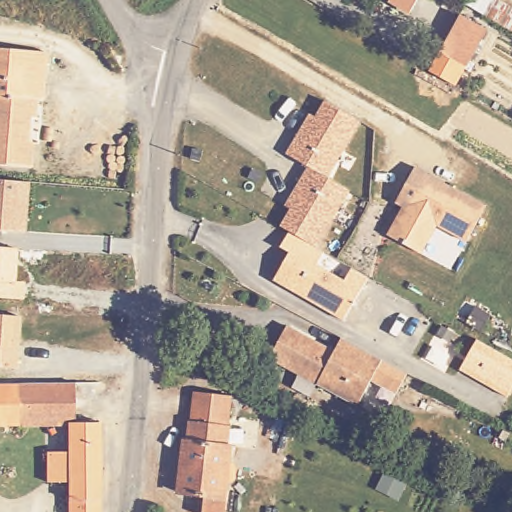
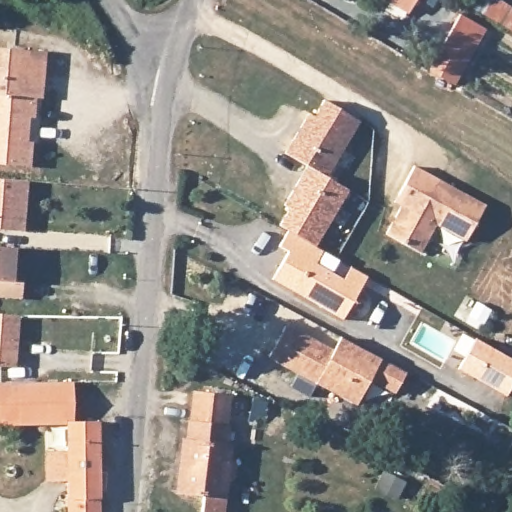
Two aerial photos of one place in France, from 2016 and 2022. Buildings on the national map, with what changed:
unchanged [(392,1),(392,0),(421,0),(413,13),(392,1)]
unchanged [(482,31),(461,66),(442,55),(462,20),(482,31)]
unchanged [(29,145),(25,170),(0,166),(0,48),(49,55),(46,77),(42,102),(35,101),(32,120),(27,120),(25,134),(24,144),(29,145)]
unchanged [(355,123),(353,126),(323,180),(346,192),(313,250),(287,235),(277,230),(287,212),(282,209),(304,170),(282,157),(305,116),(310,120),(318,104),(320,103),(355,123)]
unchanged [(387,207),(412,170),(482,209),(461,248),(432,231),(417,258),(381,238),(396,212),(387,207)]
unchanged [(0,229),(0,180),(30,183),(23,230),(0,229)]
unchanged [(317,269),(342,285),(351,271),(369,281),(344,325),(272,285),(287,257),(277,251),(287,235),(313,250),(324,256),(317,269)]
unchanged [(18,249),(15,281),(26,282),(24,301),(0,299),(0,247),(18,249)]
unchanged [(19,315),(16,367),(0,366),(0,315),(19,315)]
unchanged [(380,382),(366,373),(346,407),(274,365),(294,331),(338,356),(345,344),(390,367),(380,382)]
unchanged [(476,340),(512,359),(512,386),(506,397),(459,371),(476,340)]
unchanged [(76,425),(102,425),(101,502),(100,502),(100,512),(70,512),(70,503),(69,504),(70,485),(49,486),(48,455),(70,455),(69,428),(19,429),(19,427),(0,427),(0,385),(20,386),(77,385),(76,425)]
unchanged [(195,428),(197,393),(233,396),(230,432),(236,433),(231,505),(211,505),(211,485),(187,482),(191,428),(195,428)]

